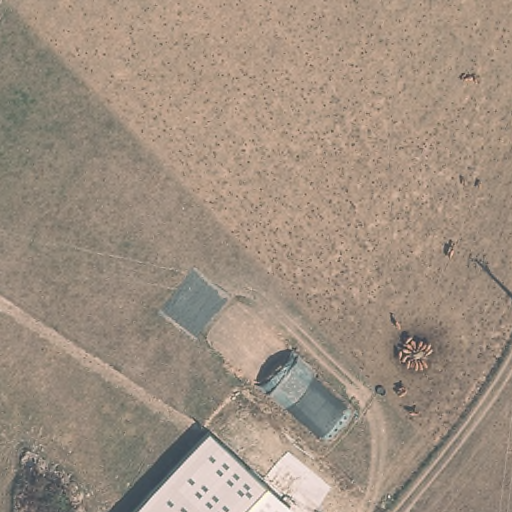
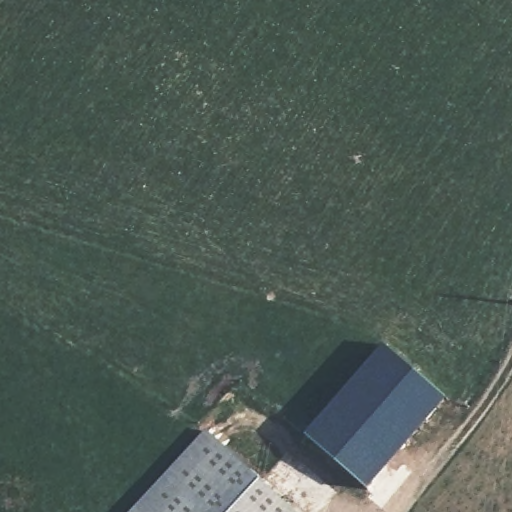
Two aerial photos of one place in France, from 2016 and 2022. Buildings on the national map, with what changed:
new [(380,347),(440,400),(361,490),(300,438),(380,347)]
unchanged [(295,512),(131,512),(207,430),(295,512)]

